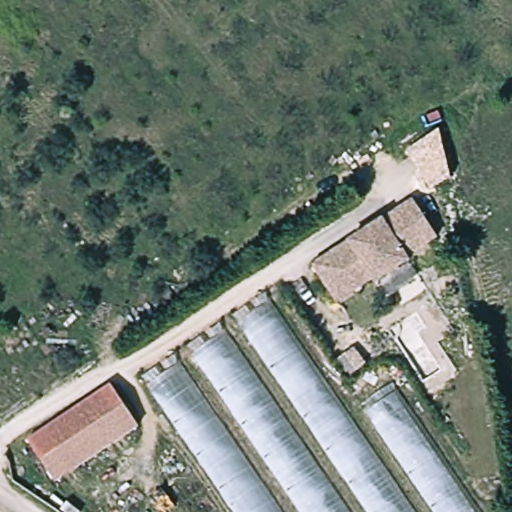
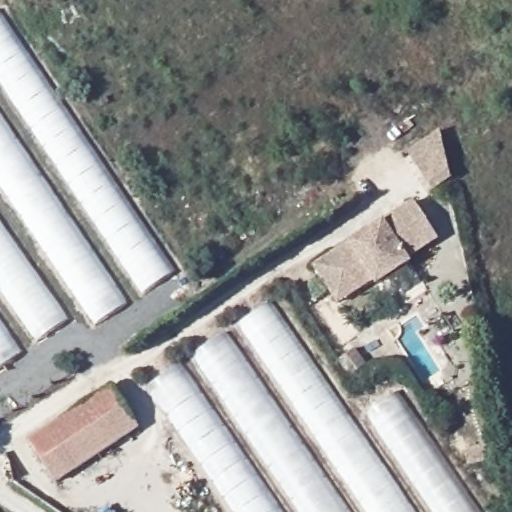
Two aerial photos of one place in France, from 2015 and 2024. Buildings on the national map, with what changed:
new [(0,82),(0,10),(1,9),(178,272),(143,295),(0,82)]
new [(130,302),(95,325),(0,187),(0,110),(130,302)]
new [(409,149),(419,145),(418,142),(439,132),(455,179),(428,191),(409,149)]
unchanged [(327,286),(315,268),(351,243),(363,235),(412,201),(437,237),(405,259),(408,263),(375,285),(372,281),(356,293),(340,304),(327,286)]
new [(0,288),(0,221),(68,319),(36,340),(0,288)]
unchanged [(270,290),(350,415),(401,387),(486,512),(234,512),(141,377),(270,290)]
new [(25,354),(0,370),(0,318),(25,354)]
unchanged [(114,388),(142,429),(60,486),(32,444),(114,388)]

